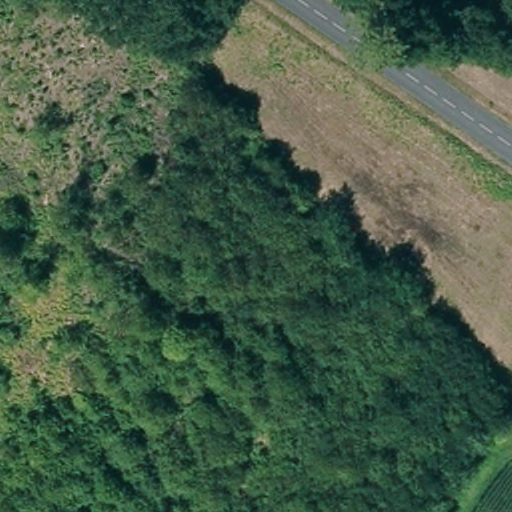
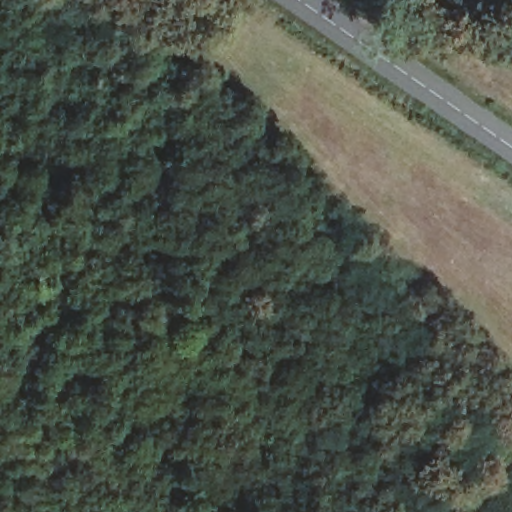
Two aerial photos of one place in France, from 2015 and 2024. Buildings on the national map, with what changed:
[]

